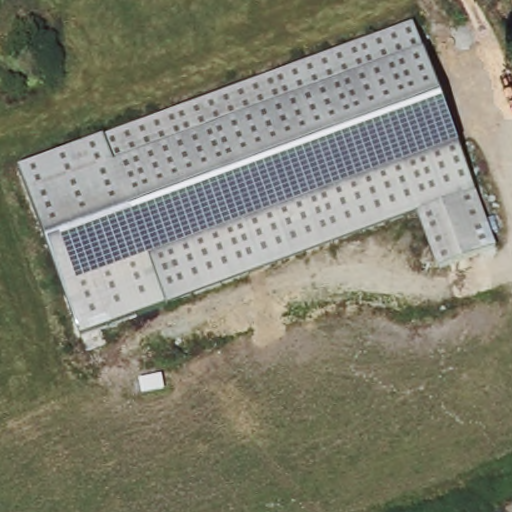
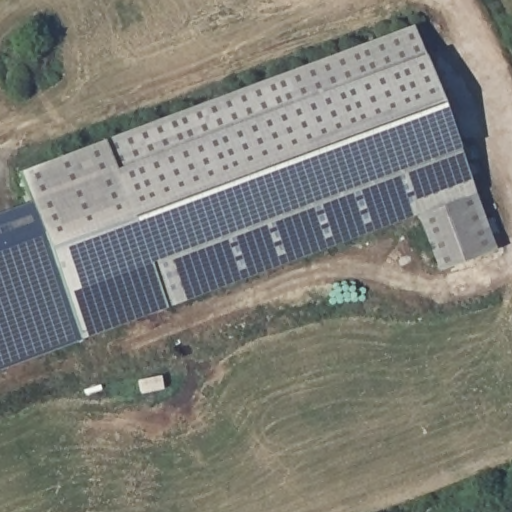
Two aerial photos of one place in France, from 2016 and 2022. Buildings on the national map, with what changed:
unchanged [(23,168),(409,26),(492,245),(437,269),(416,213),(83,337),(23,168)]
new [(0,215),(35,203),(83,337),(0,367),(0,215)]

